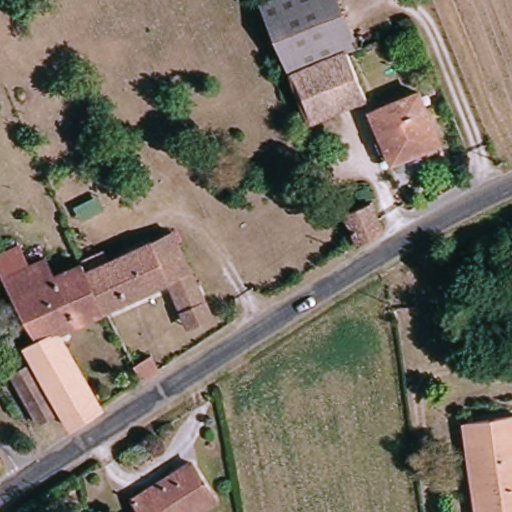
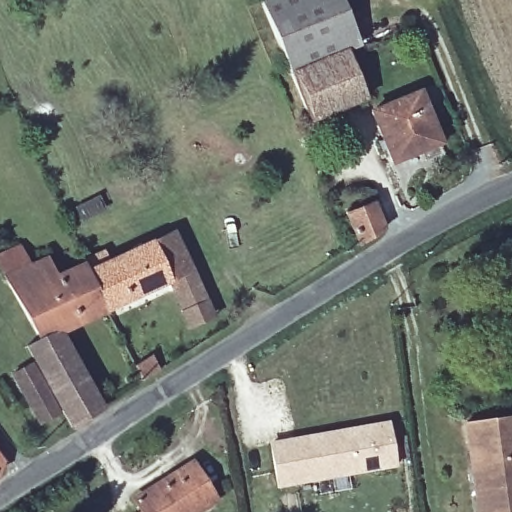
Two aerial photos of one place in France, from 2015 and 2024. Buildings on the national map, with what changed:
unchanged [(344,55),(365,101),(313,123),(261,6),(275,0),(337,0),(358,49),(344,55)]
unchanged [(422,91),(441,139),(393,158),(373,110),(422,91)]
unchanged [(376,195),(388,226),(361,242),(347,207),(376,195)]
unchanged [(212,320),(187,331),(167,286),(150,246),(174,235),(212,320)]
unchanged [(150,246),(167,286),(105,314),(87,274),(150,246)]
unchanged [(60,335),(38,345),(0,259),(25,248),(34,269),(51,261),(57,277),(83,265),(87,274),(105,314),(60,335)]
unchanged [(60,335),(100,411),(67,431),(27,351),(38,345),(60,335)]
unchanged [(165,363),(144,376),(135,358),(154,346),(165,363)]
unchanged [(29,375),(52,420),(34,429),(11,384),(29,375)]
unchanged [(473,512),(463,427),(512,420),(512,512),(473,512)]
new [(268,443),(388,421),(397,467),(277,488),(268,443)]
unchanged [(219,504),(206,512),(149,512),(142,502),(195,467),(219,504)]

